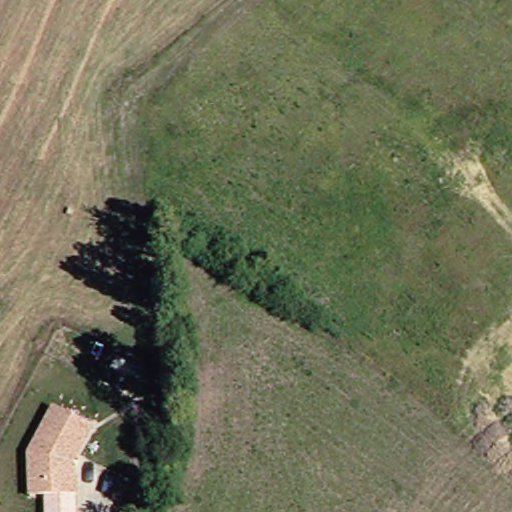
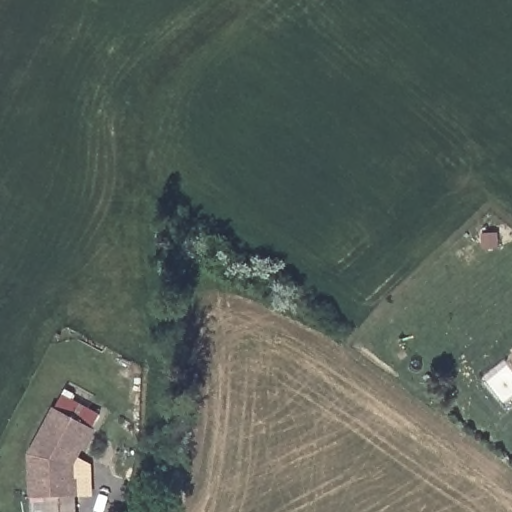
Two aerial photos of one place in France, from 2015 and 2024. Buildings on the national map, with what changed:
unchanged [(28,467),(27,438),(51,392),(90,410),(71,450),(71,465),(74,465),(74,480),(41,482),(28,483),(28,467)]

